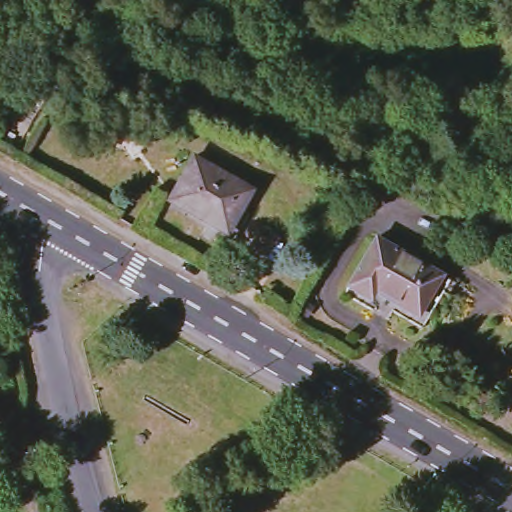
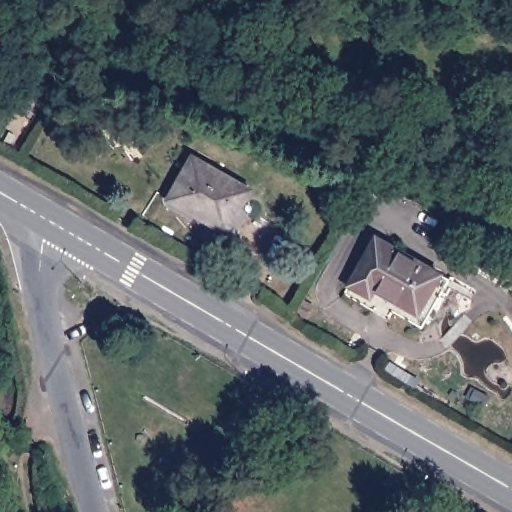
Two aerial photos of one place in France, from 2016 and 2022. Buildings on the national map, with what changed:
unchanged [(207,220),(204,226),(165,205),(190,162),(245,195),(240,204),(226,230),(207,220)]
unchanged [(378,291),(372,298),(351,285),(360,270),(378,239),(441,276),(420,315),(378,291)]

